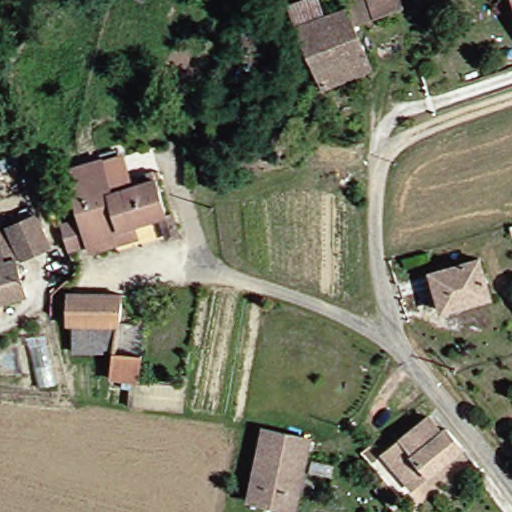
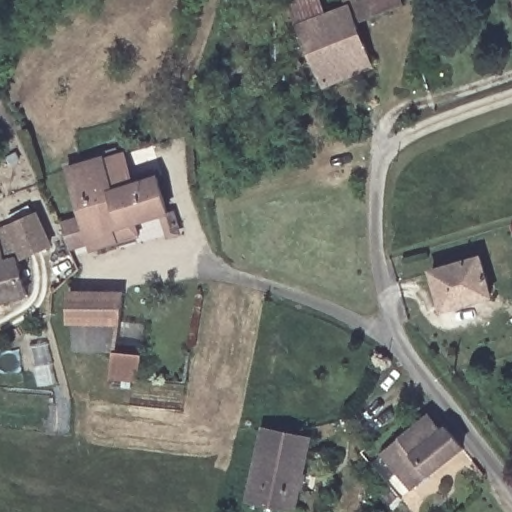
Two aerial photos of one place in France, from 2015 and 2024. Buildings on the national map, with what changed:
unchanged [(364,19),(378,64),(330,83),(307,24),(352,10),(346,0),(389,0),(392,9),(364,19)]
unchanged [(122,252),(119,248),(107,253),(102,247),(87,257),(72,230),(92,220),(66,178),(79,168),(100,156),(120,188),(154,166),(176,203),(135,227),(142,239),(122,252)]
unchanged [(45,245),(16,259),(4,224),(31,212),(45,245)]
unchanged [(9,260),(22,297),(0,304),(0,260),(1,263),(9,260)]
unchanged [(501,299),(452,311),(441,273),(486,260),(501,299)]
unchanged [(126,294),(124,354),(148,354),(145,380),(189,380),(187,412),(139,408),(138,384),(118,382),(117,354),(70,351),(72,327),(72,293),(126,294)]
unchanged [(415,494),(383,458),(436,413),(449,428),(453,424),(472,444),(415,494)]
unchanged [(300,503),(257,494),(270,428),(312,435),(300,503)]

